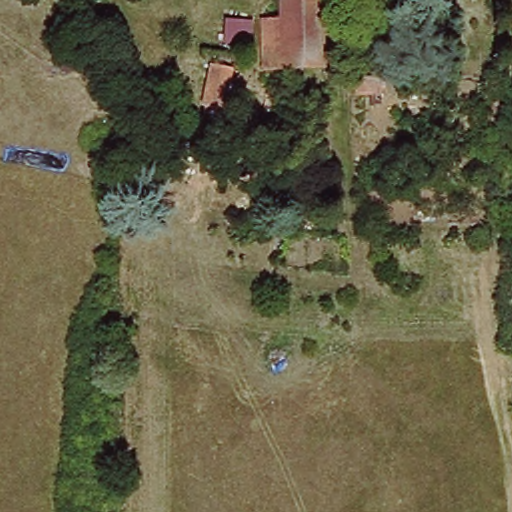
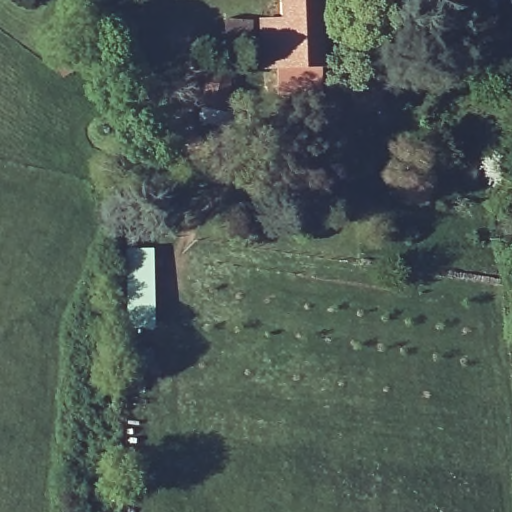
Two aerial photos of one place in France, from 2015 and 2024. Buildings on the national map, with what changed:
unchanged [(322,67),(261,69),(260,17),(281,17),(281,0),(321,0),(322,67)]
new [(154,329),(126,329),(125,249),(153,248),(154,329)]

